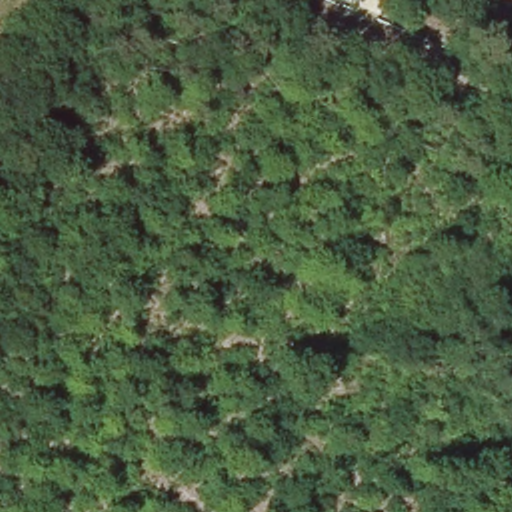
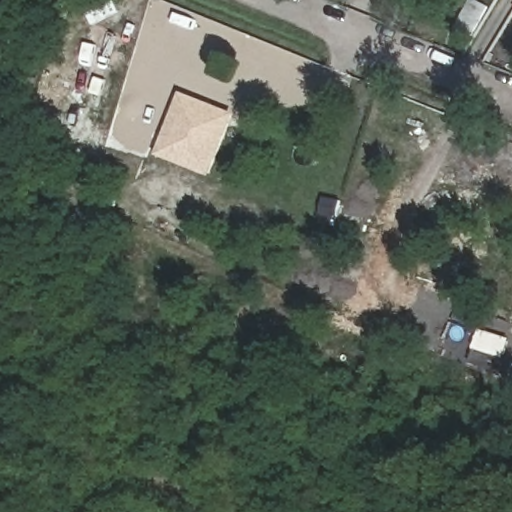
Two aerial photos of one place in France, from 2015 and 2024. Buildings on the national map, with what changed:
new [(235,113),(210,176),(155,154),(180,92),(235,113)]

